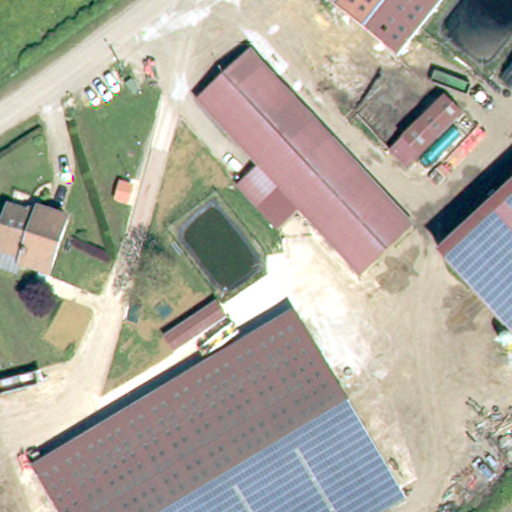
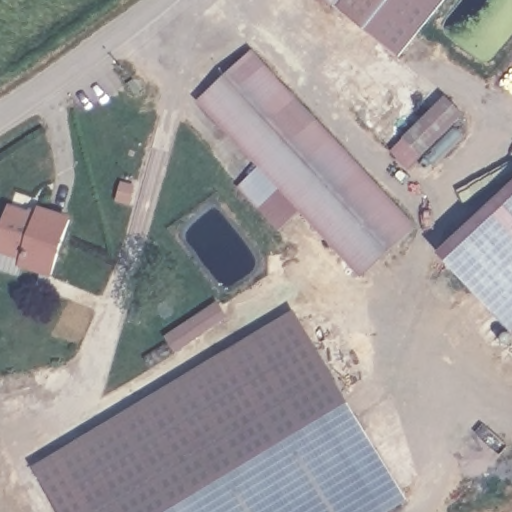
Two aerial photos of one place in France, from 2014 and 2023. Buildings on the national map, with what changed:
unchanged [(325,0),(343,0),(336,9),(325,0)]
unchanged [(443,0),(399,57),(336,9),(343,0),(443,0)]
unchanged [(244,188),(256,176),(265,165),(201,105),(249,53),(424,218),(376,269),(289,188),(279,197),(268,210),(244,188)]
unchanged [(446,94),(464,120),(413,170),(392,148),(446,94)]
unchanged [(512,197),(512,330),(447,267),(512,197)]
unchanged [(0,236),(8,210),(37,219),(38,214),(67,223),(50,276),(18,266),(20,260),(0,254),(0,236)]
unchanged [(226,319),(174,352),(163,334),(213,301),(226,319)]
unchanged [(292,313),(406,498),(382,512),(62,512),(34,465),(292,313)]

